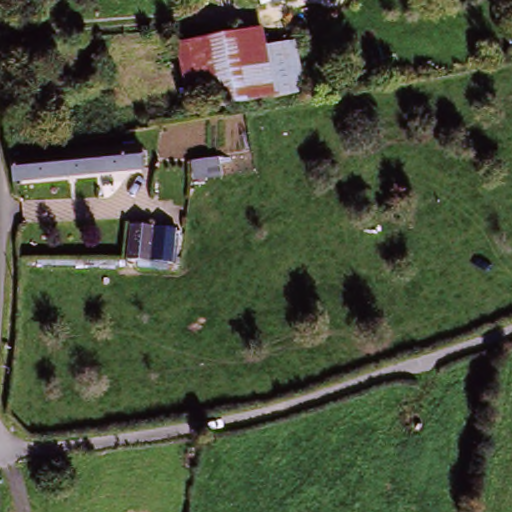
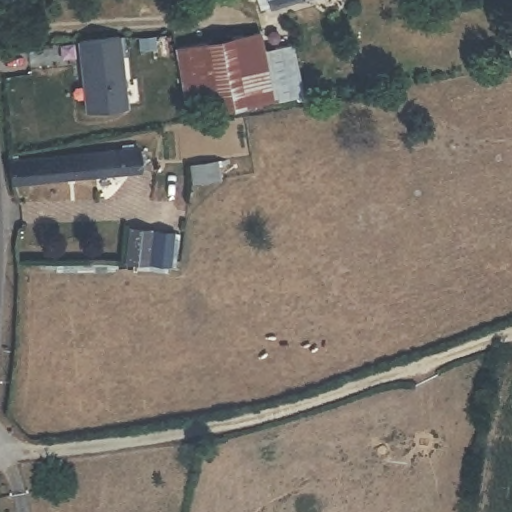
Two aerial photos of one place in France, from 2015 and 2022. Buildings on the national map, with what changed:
unchanged [(262,9),(259,0),(293,0),(262,9)]
unchanged [(508,30),(512,29),(512,48),(511,48),(508,30)]
new [(78,39),(118,35),(125,107),(85,110),(78,39)]
unchanged [(271,101),(216,112),(214,97),(184,103),(174,50),(258,36),(261,54),(271,101)]
unchanged [(289,49),(299,95),(271,101),(261,54),(289,49)]
unchanged [(49,157),(106,152),(133,148),(134,157),(136,170),(109,173),(51,178),(13,182),(11,161),(49,157)]
unchanged [(128,256),(143,221),(166,232),(162,241),(174,246),(163,271),(151,266),(128,256)]

